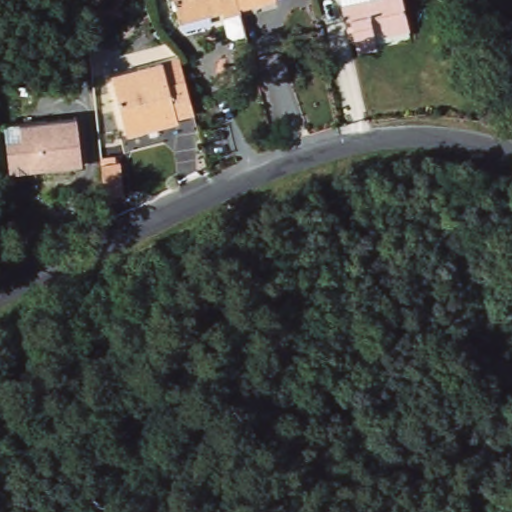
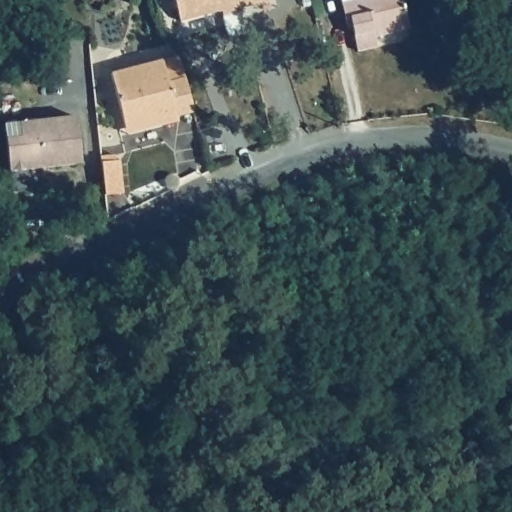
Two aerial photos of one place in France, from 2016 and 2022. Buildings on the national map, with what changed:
unchanged [(263,0),(237,7),(239,15),(225,17),(223,11),(179,24),(173,0),(263,0)]
unchanged [(336,0),(336,16),(323,16),(322,0),(336,0)]
unchanged [(374,50),(354,50),(355,17),(349,17),(348,0),(413,0),(413,27),(413,39),(374,39),(374,50)]
unchanged [(309,3),(318,3),(318,15),(309,15),(309,3)]
unchanged [(167,120),(167,125),(114,127),(113,65),(183,63),(183,74),(184,120),(167,120)]
unchanged [(7,124),(63,122),(80,121),(81,168),(64,169),(8,171),(7,124)]

